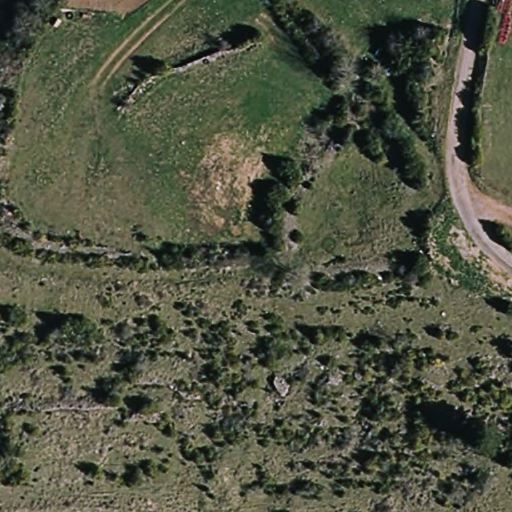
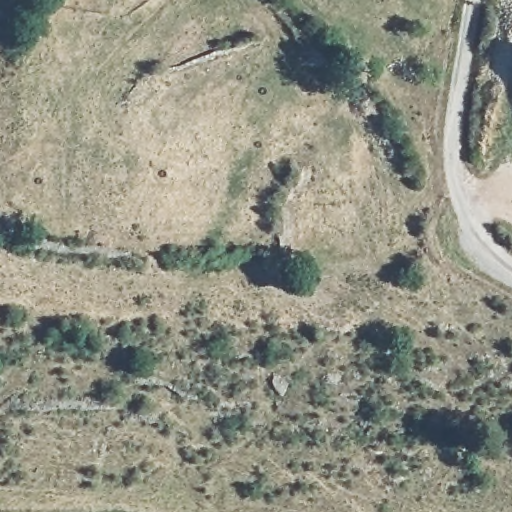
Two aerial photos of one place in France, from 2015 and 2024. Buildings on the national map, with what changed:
[]

